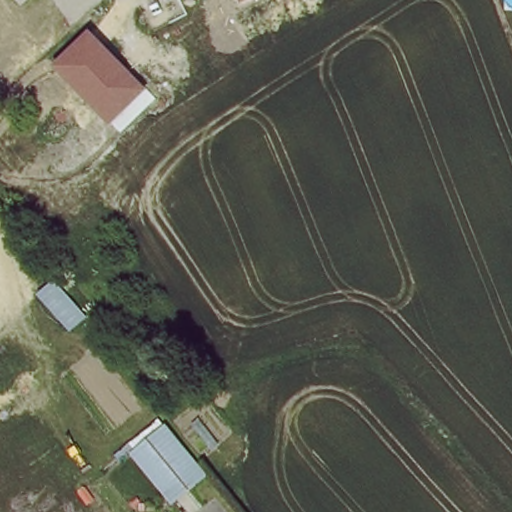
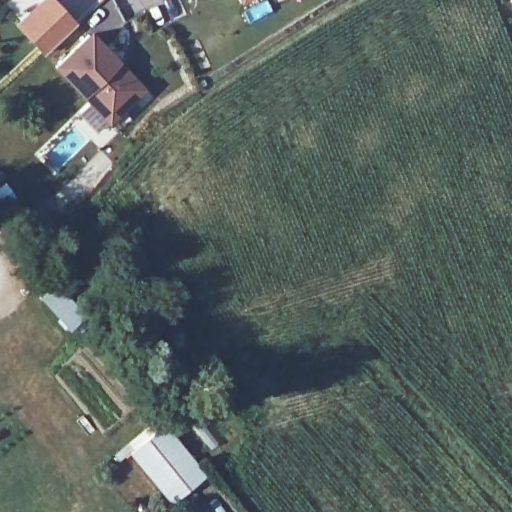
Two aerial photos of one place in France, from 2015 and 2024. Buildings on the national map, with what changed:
new [(44,0),(52,0),(75,25),(45,53),(18,24),(44,0)]
unchanged [(247,0),(242,2),(240,0),(247,0)]
unchanged [(147,89),(110,125),(52,67),(90,31),(147,89)]
unchanged [(54,280),(86,316),(70,330),(37,294),(54,280)]
unchanged [(170,501),(128,448),(164,419),(205,474),(170,501)]

